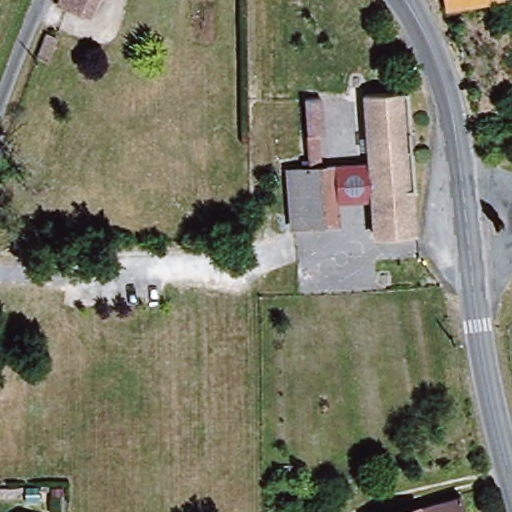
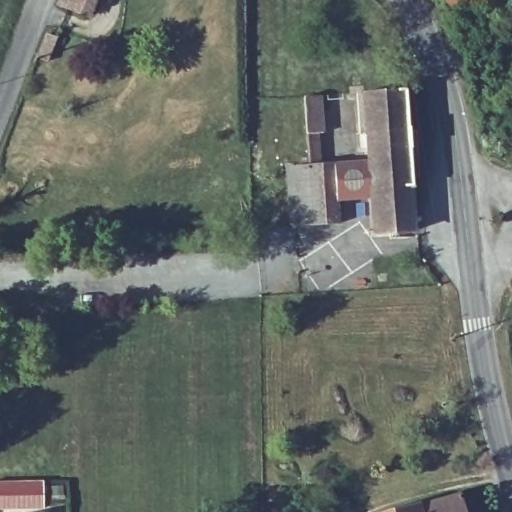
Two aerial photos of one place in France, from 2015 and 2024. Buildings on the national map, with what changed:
unchanged [(71,32),(46,20),(56,0),(86,0),(71,32)]
unchanged [(439,8),(438,0),(490,0),(439,8)]
unchanged [(413,190),(411,197),(413,234),(372,236),(369,202),(368,164),(365,97),(411,94),(413,190)]
unchanged [(319,99),(321,135),(317,134),(319,167),(332,166),(334,204),(335,225),(292,227),(289,169),(308,167),(304,101),(319,99)]
unchanged [(332,166),(368,164),(369,202),(334,204),(332,166)]
new [(0,482),(43,482),(44,508),(0,509),(0,482)]
unchanged [(461,512),(409,512),(458,499),(461,512)]

